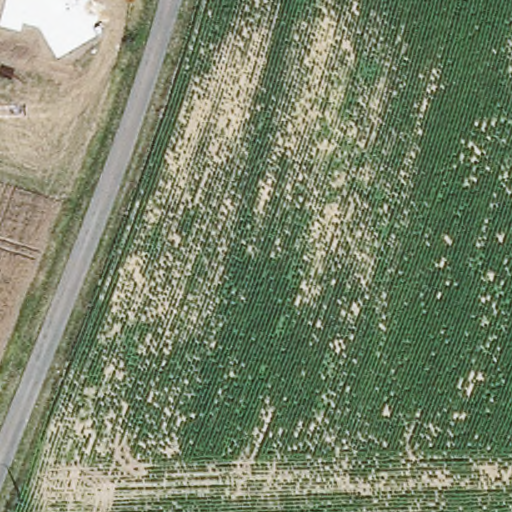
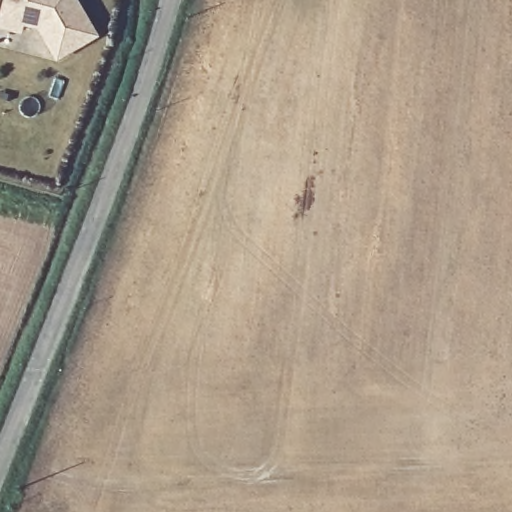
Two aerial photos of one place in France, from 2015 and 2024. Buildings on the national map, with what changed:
new [(98,32),(59,57),(40,27),(22,22),(20,31),(0,27),(0,22),(3,8),(5,0),(77,0),(98,32)]

